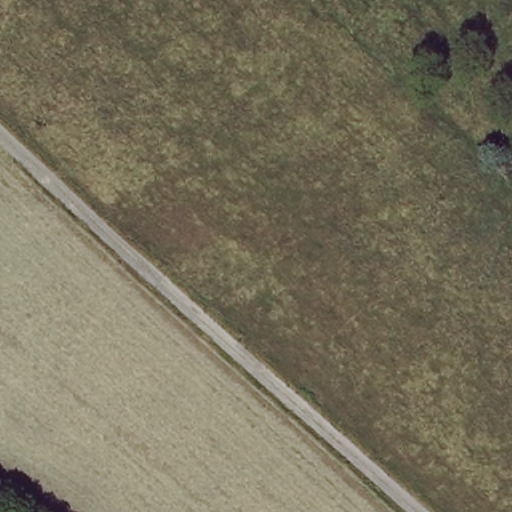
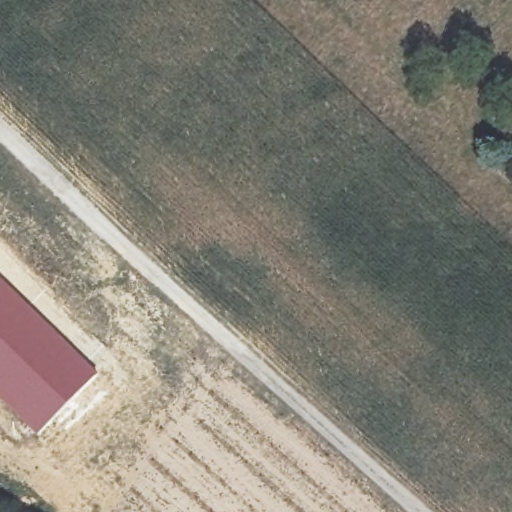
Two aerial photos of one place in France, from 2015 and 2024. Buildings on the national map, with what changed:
new [(99,373),(37,435),(0,399),(0,274),(19,292),(99,373)]

